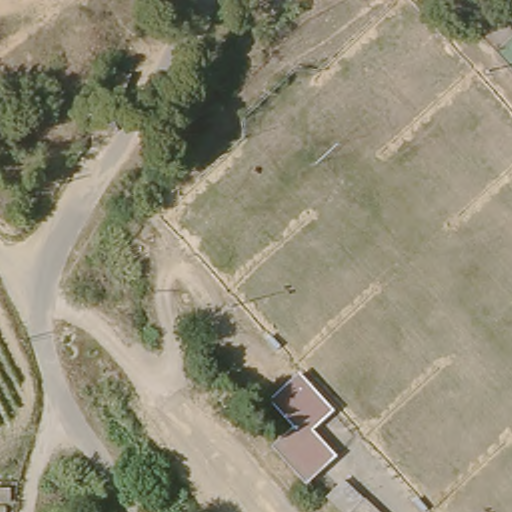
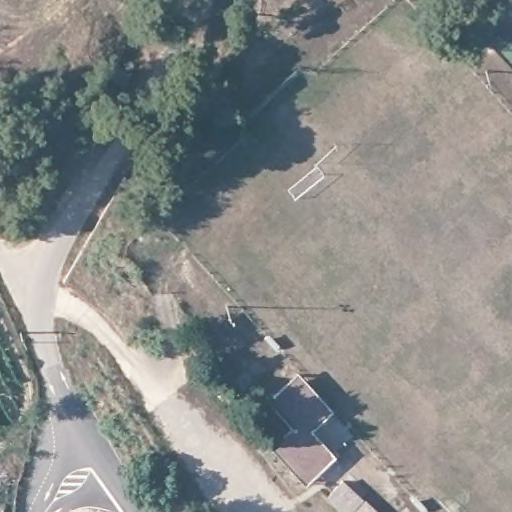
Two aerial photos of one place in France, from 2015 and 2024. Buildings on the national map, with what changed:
unchanged [(299,373),(331,410),(312,428),(333,452),(304,480),(271,443),(292,424),(270,399),(299,373)]
unchanged [(345,512),(327,495),(342,480),(377,512),(345,512)]

